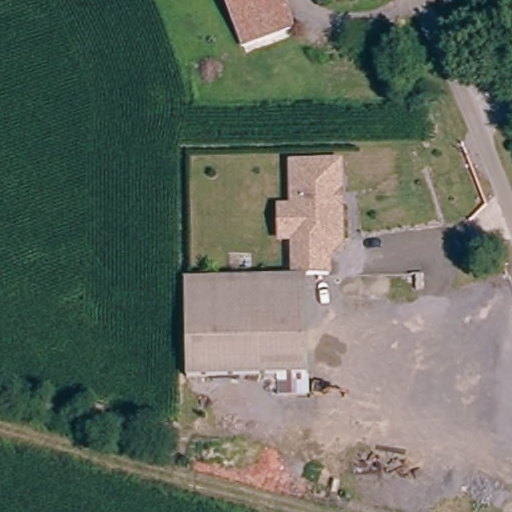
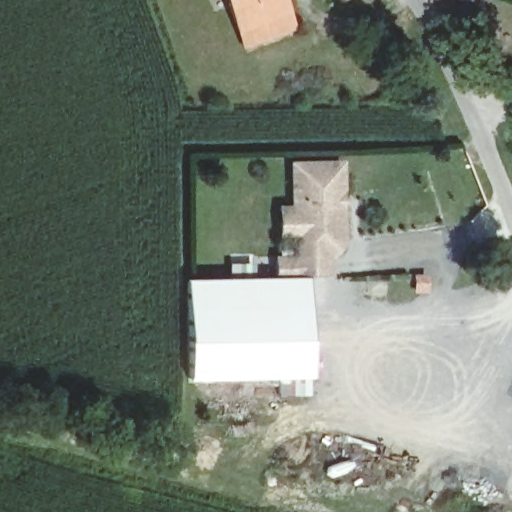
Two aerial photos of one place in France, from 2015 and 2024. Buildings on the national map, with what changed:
unchanged [(232,0),(286,0),(293,18),(247,35),(232,0)]
unchanged [(327,4),(325,0),(340,0),(327,4)]
unchanged [(288,254),(287,237),(273,238),(272,208),(285,208),(282,162),(330,159),(335,237),(322,252),(323,271),(290,273),(288,254)]
unchanged [(184,284),(302,276),(307,372),(190,379),(184,284)]

